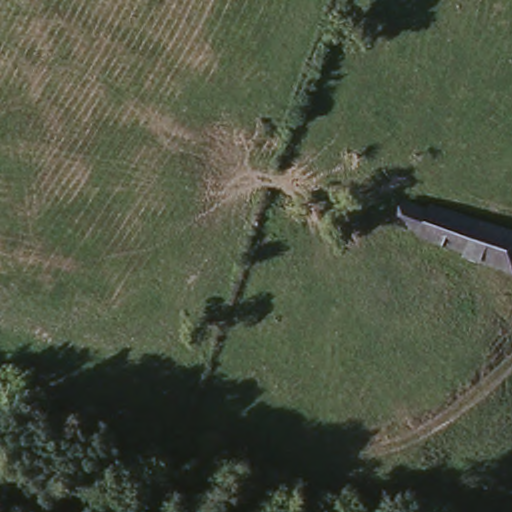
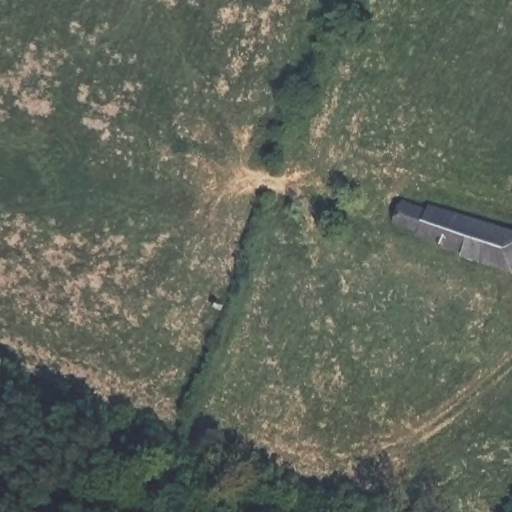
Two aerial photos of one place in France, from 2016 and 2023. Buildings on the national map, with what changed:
unchanged [(435,199),(512,232),(512,270),(480,259),(481,253),(400,220),(409,197),(431,206),(435,199)]

